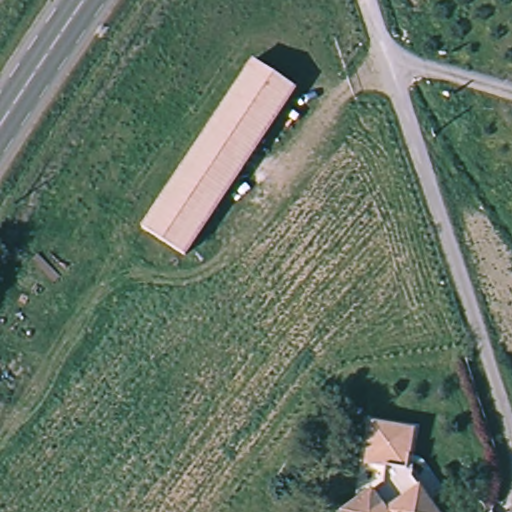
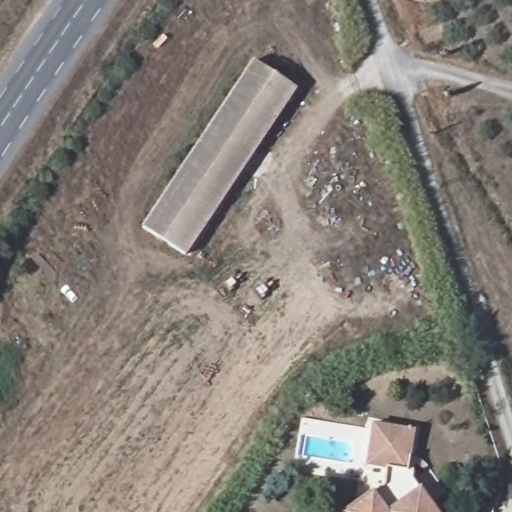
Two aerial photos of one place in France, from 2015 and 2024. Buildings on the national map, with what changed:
unchanged [(297,87),(185,256),(141,227),(253,60),(297,87)]
unchanged [(415,428),(407,467),(439,512),(346,512),(345,510),(385,481),(388,465),(365,460),(375,418),(415,428)]

